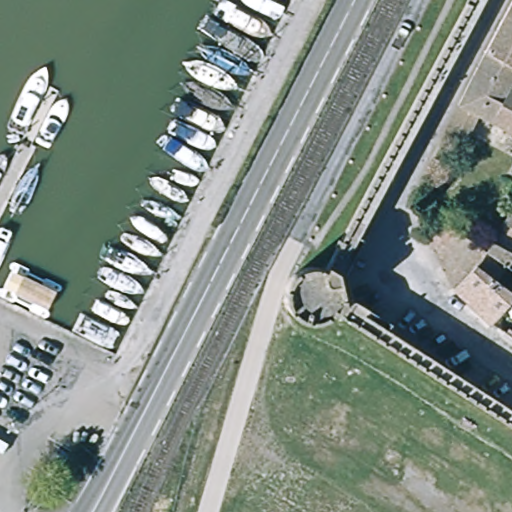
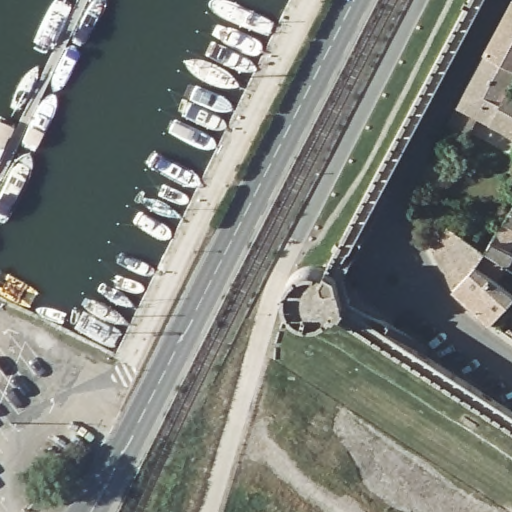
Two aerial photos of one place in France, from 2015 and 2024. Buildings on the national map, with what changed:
unchanged [(512,2),(512,67),(485,52),(512,2)]
unchanged [(478,116),(466,143),(445,132),(459,105),(469,83),(485,52),(512,67),(512,86),(510,88),(512,89),(512,134),(490,122),(478,116)]
unchanged [(492,241),(504,223),(512,211),(512,246),(509,250),(512,252),(512,259),(507,266),(508,267),(497,282),(489,275),(475,266),(454,288),(434,252),(425,235),(437,222),(438,220),(447,228),(449,225),(485,252),(485,251),(486,250),(492,241)]
unchanged [(454,288),(475,266),(489,275),(497,282),(512,294),(512,301),(491,324),(454,288)]
unchanged [(325,274),(329,276),(334,281),(337,286),(338,291),(338,297),(337,310),(332,314),(325,319),(318,321),(312,320),(305,318),(299,315),(293,310),(290,305),(288,298),(288,291),(290,284),(294,278),(298,274),(302,271),(309,269),(312,268),(316,270),(325,274)]

